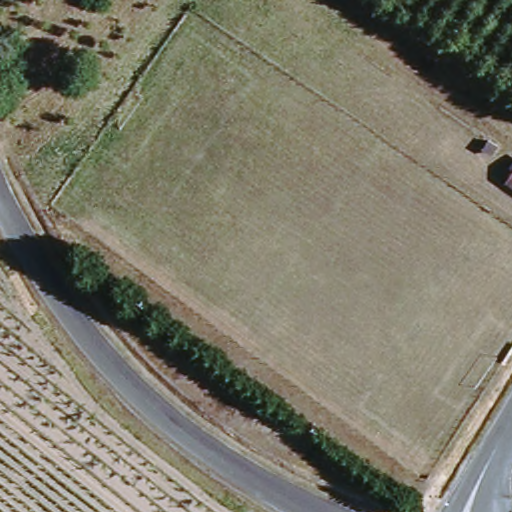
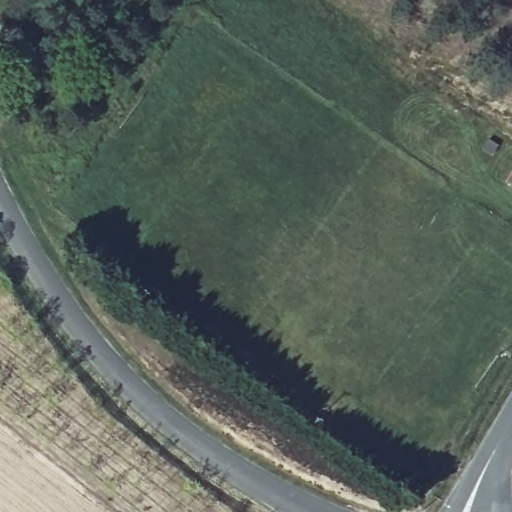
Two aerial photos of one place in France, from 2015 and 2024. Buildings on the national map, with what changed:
unchanged [(512,176),(512,184),(508,181),(512,176)]

